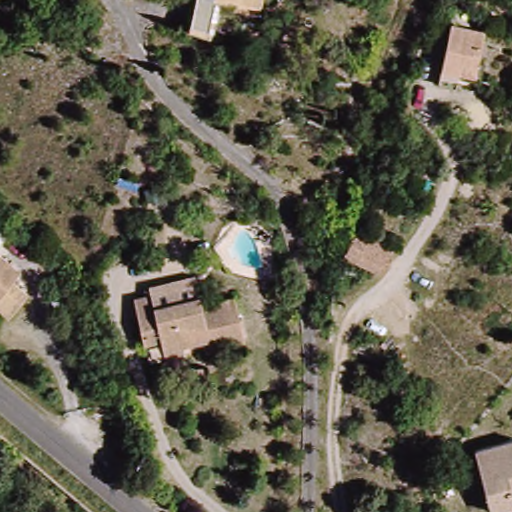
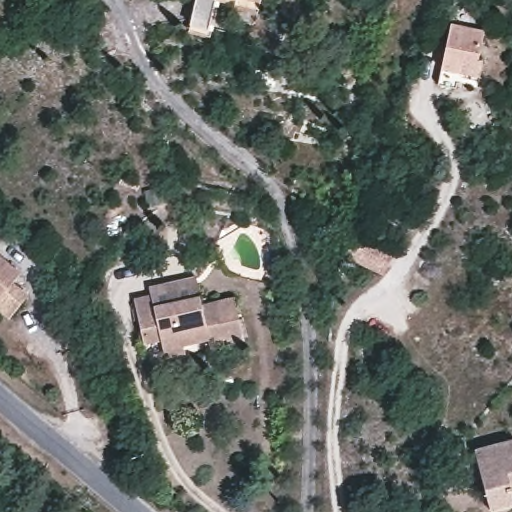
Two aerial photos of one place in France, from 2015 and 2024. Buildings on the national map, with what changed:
unchanged [(189,21),(193,0),(215,0),(210,25),(189,21)]
unchanged [(261,0),(272,0),(272,2),(261,0)]
unchanged [(478,83),(458,82),(459,68),(441,67),(446,21),(479,26),(478,54),(482,55),(478,83)]
unchanged [(356,227),(395,246),(382,272),(344,252),(356,227)]
unchanged [(22,269),(12,283),(30,299),(11,321),(0,311),(0,251),(22,269)]
unchanged [(167,357),(164,344),(163,334),(143,335),(141,322),(137,298),(157,295),(158,306),(204,302),(205,310),(239,307),(243,351),(208,352),(208,342),(186,345),(186,357),(167,357)]
unchanged [(483,489),(480,441),(512,439),(512,487),(510,487),(511,512),(486,512),(483,489)]

